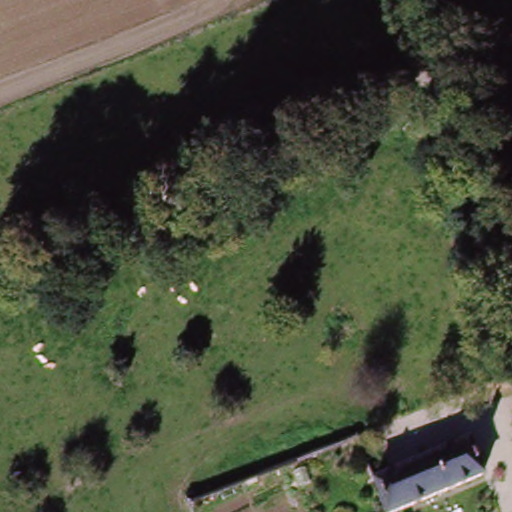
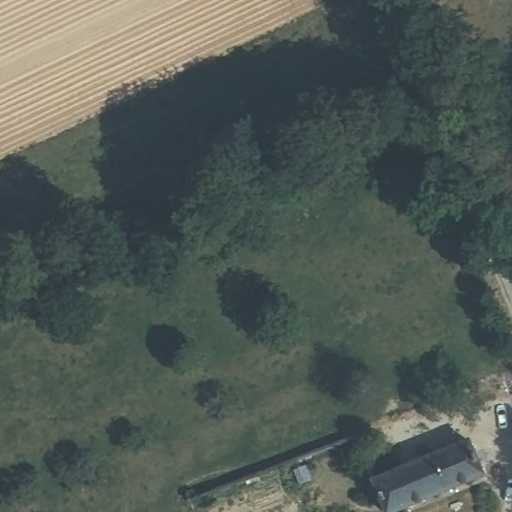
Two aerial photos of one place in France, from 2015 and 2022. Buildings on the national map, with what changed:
unchanged [(394,512),(392,512),(377,479),(471,440),(486,474),(394,512)]

